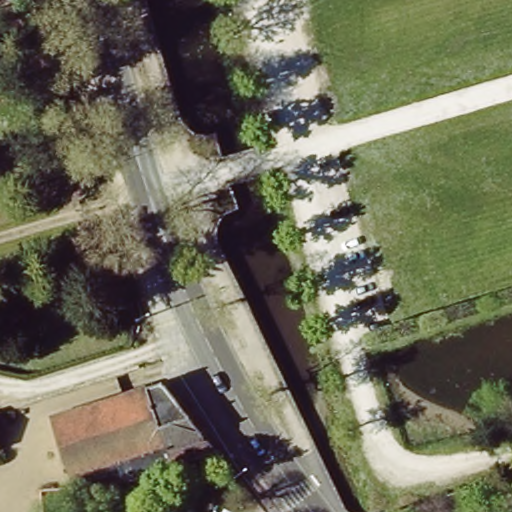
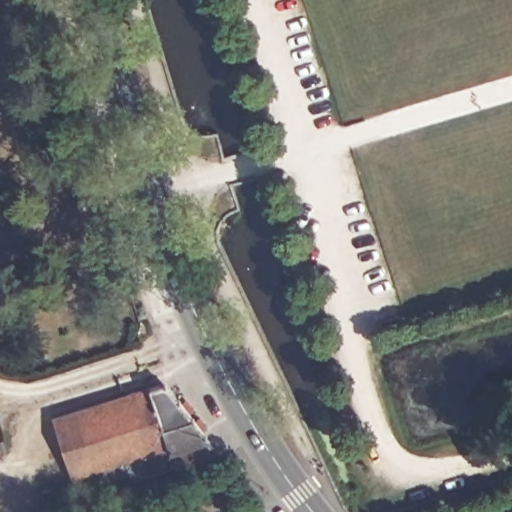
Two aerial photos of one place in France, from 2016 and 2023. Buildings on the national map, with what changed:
unchanged [(208,453),(113,481),(62,486),(41,418),(152,384),(154,385),(156,386),(158,387),(208,453)]
unchanged [(2,448),(0,448),(0,443),(2,448)]

